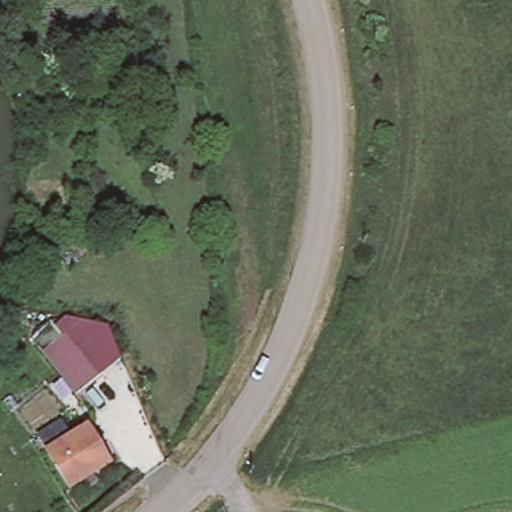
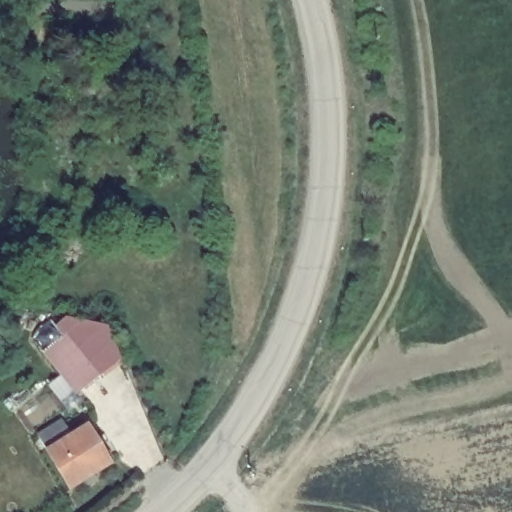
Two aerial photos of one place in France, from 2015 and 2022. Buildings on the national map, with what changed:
unchanged [(75,394),(42,351),(47,346),(42,337),(75,309),(119,359),(75,394)]
unchanged [(37,449),(51,441),(54,447),(73,436),(83,431),(90,427),(100,447),(95,450),(104,466),(93,473),(62,491),(41,454),(37,449)]

